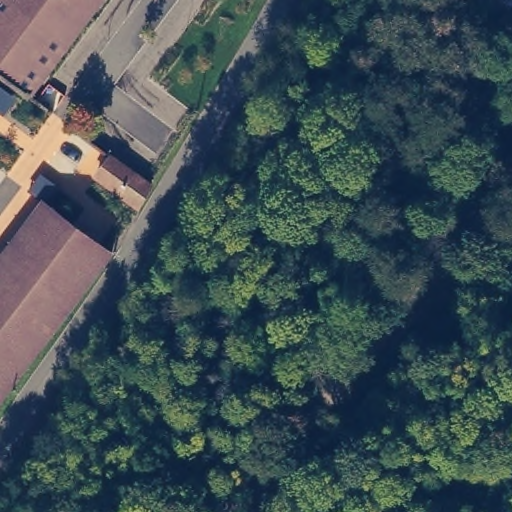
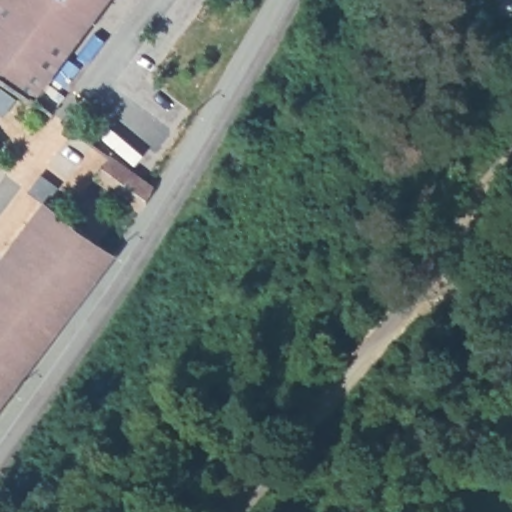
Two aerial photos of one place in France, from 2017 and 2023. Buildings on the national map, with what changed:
unchanged [(0,71),(0,0),(98,0),(28,92),(0,71)]
unchanged [(155,187),(142,208),(101,176),(117,157),(138,173),(155,187)]
unchanged [(0,266),(48,202),(117,254),(0,409),(0,266)]

